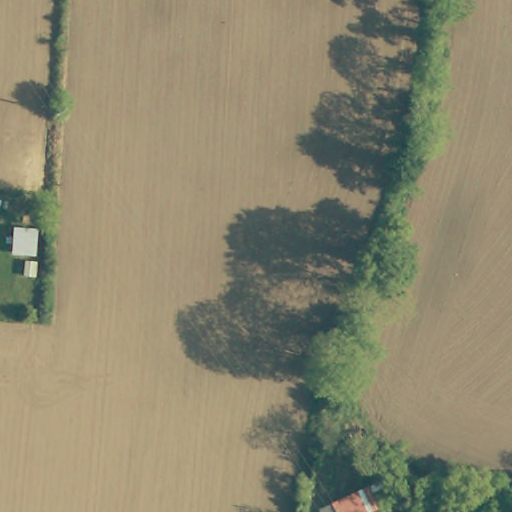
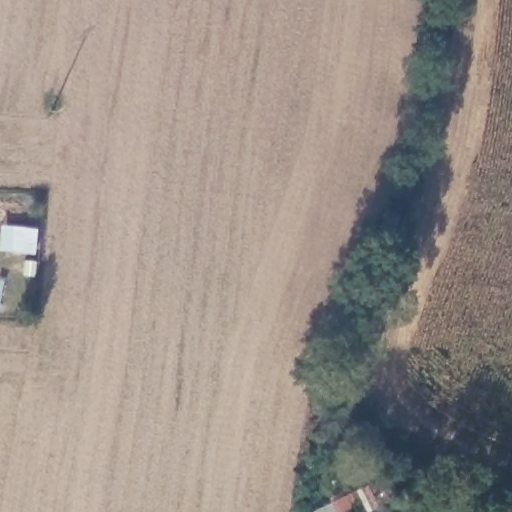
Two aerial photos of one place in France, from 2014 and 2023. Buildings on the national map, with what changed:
[]

